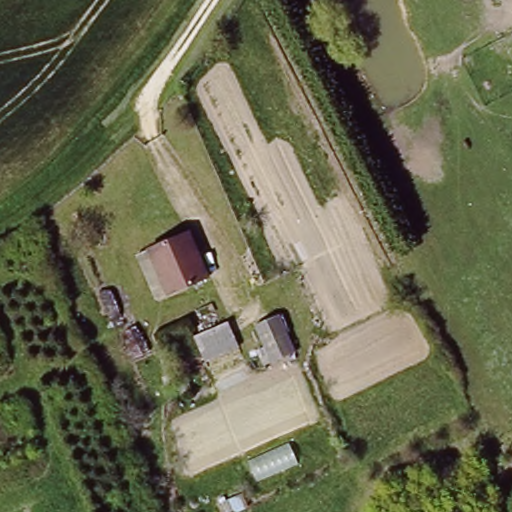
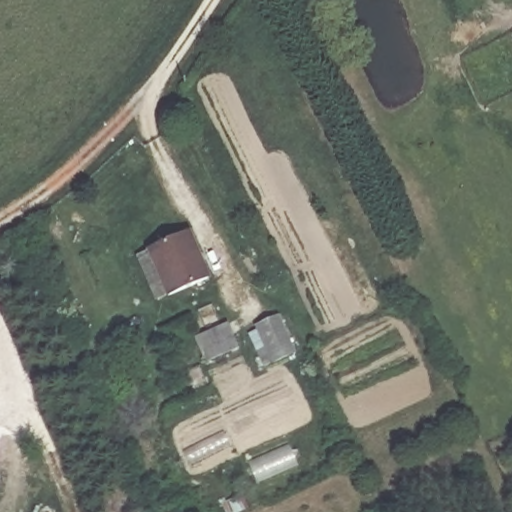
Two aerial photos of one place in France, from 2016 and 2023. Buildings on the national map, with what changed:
unchanged [(142,249),(156,243),(191,228),(210,270),(175,287),(161,293),(142,249)]
unchanged [(280,315),(285,326),(298,356),(274,367),(262,339),(256,325),(280,315)]
unchanged [(225,328),(234,348),(203,361),(195,340),(225,328)]

